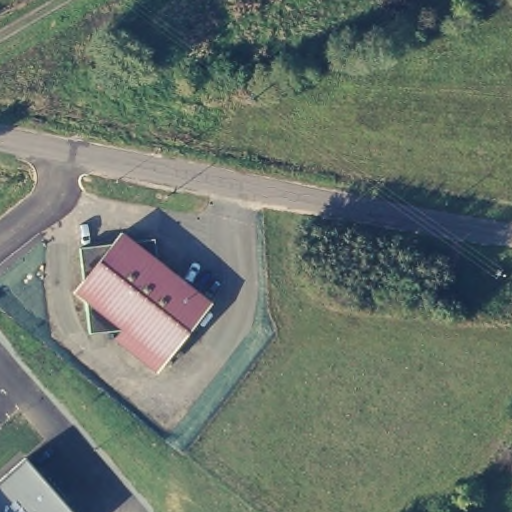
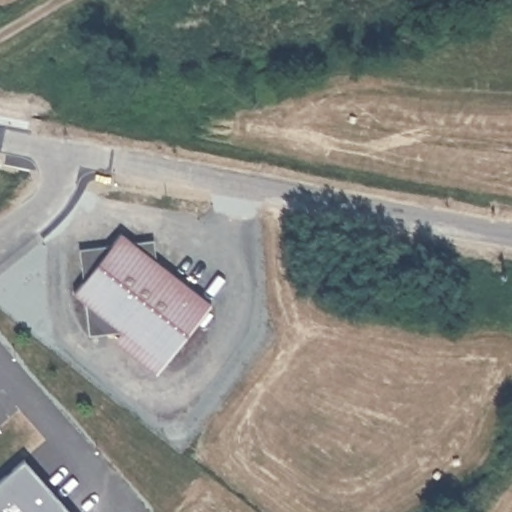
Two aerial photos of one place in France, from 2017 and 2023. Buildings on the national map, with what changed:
unchanged [(115,343),(122,333),(89,337),(85,304),(75,295),(83,284),(80,251),(112,248),(122,236),(133,245),(154,243),(157,263),(212,307),(165,366),(157,376),(115,343)]
unchanged [(70,512),(0,512),(0,480),(23,459),(70,512)]

